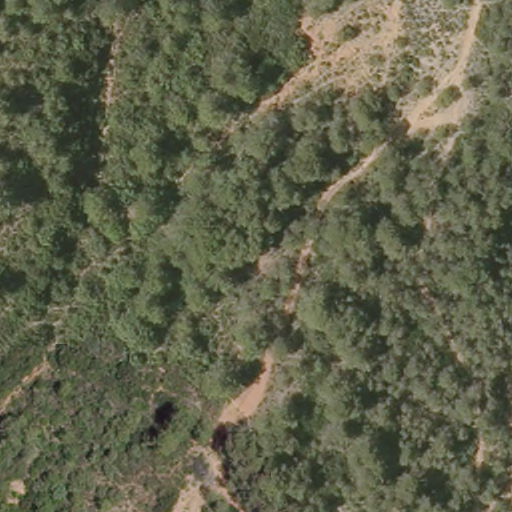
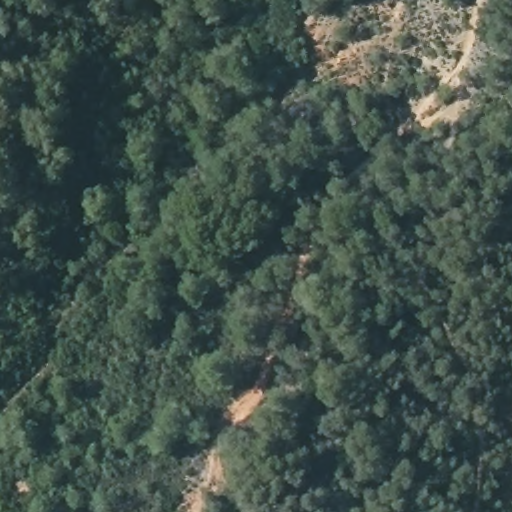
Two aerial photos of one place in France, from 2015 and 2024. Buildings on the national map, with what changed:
unchanged [(248,259),(224,246),(234,225),(257,238),(248,259)]

